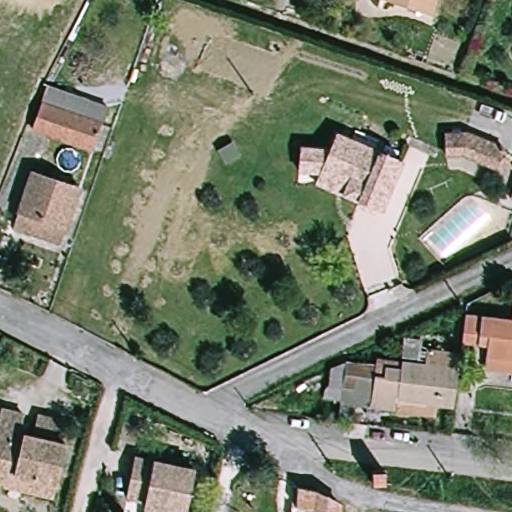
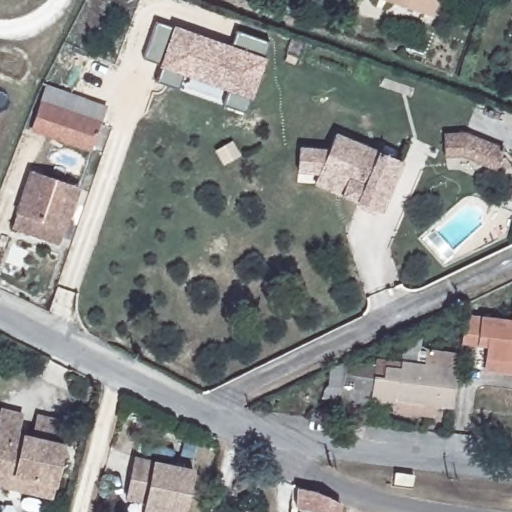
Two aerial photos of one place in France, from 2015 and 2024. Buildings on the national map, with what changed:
unchanged [(382,0),(435,0),(429,16),(382,0)]
new [(141,61),(155,23),(173,29),(231,50),(236,32),(270,44),(244,116),(223,108),(228,91),(184,76),(178,93),(154,84),(160,68),(141,61)]
unchanged [(105,107),(90,151),(30,130),(45,87),(105,107)]
unchanged [(494,165),(461,151),(445,152),(444,130),(465,128),(503,144),(494,165)]
unchanged [(325,173),(304,172),(306,149),(334,152),(341,135),(406,163),(384,212),(346,195),(320,184),(325,173)]
unchanged [(78,189),(59,245),(11,228),(29,173),(78,189)]
unchanged [(509,201),(512,194),(512,202),(509,201)]
unchanged [(462,330),(464,316),(511,322),(512,310),(512,375),(485,371),(486,365),(484,365),(486,347),(461,343),(462,330)]
unchanged [(404,370),(406,362),(429,365),(431,350),(464,355),(457,409),(440,407),(439,416),(374,408),(379,366),(404,370)]
unchanged [(374,408),(358,406),(356,420),(324,416),(328,398),(331,388),(334,369),(349,363),(379,366),(374,408)]
unchanged [(5,485),(0,483),(0,414),(1,410),(23,415),(18,435),(34,439),(40,414),(65,420),(65,433),(63,445),(53,486),(50,498),(5,488),(5,485)]
unchanged [(149,503),(131,499),(139,458),(197,470),(188,512),(148,512),(148,508),(149,503)]
unchanged [(299,506),(301,488),(319,492),(343,503),(342,512),(294,512),(294,506),(299,506)]

